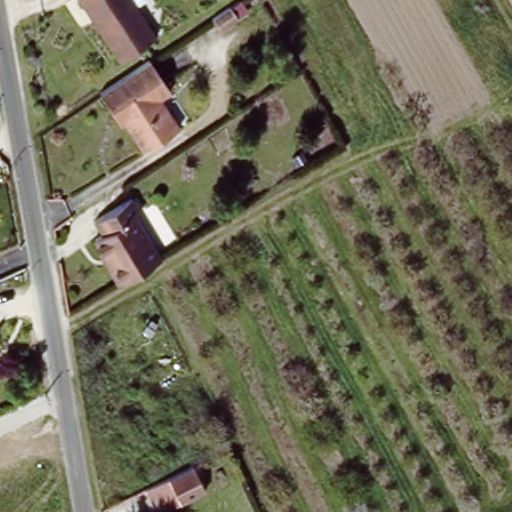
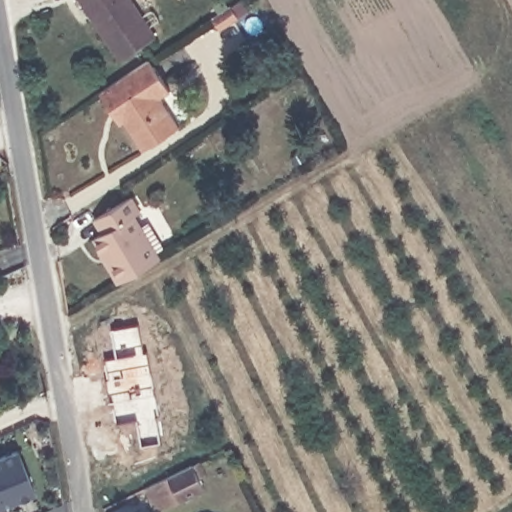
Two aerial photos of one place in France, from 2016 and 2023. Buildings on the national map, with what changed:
unchanged [(157,37),(122,61),(80,0),(133,0),(157,37)]
unchanged [(225,8),(233,20),(216,31),(208,19),(225,8)]
unchanged [(107,114),(97,99),(147,65),(167,96),(158,103),(177,130),(140,154),(123,130),(120,132),(107,114)]
unchanged [(97,239),(105,233),(98,221),(135,198),(143,212),(137,216),(163,258),(125,281),(97,239)]
demolished [(0,386),(2,389),(0,390),(0,386)]
new [(0,456),(16,449),(34,493),(0,506),(0,456)]
unchanged [(197,465),(208,490),(186,501),(175,477),(197,465)]

